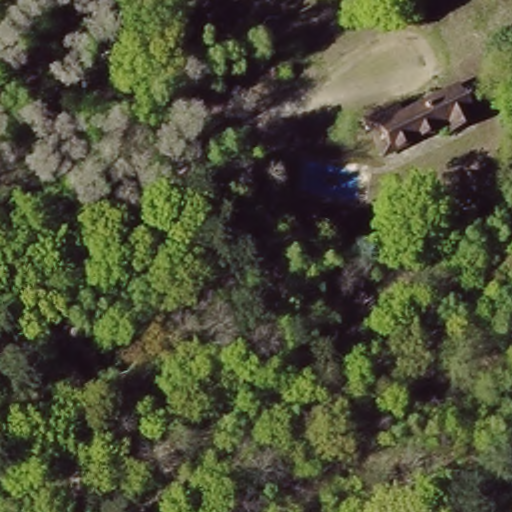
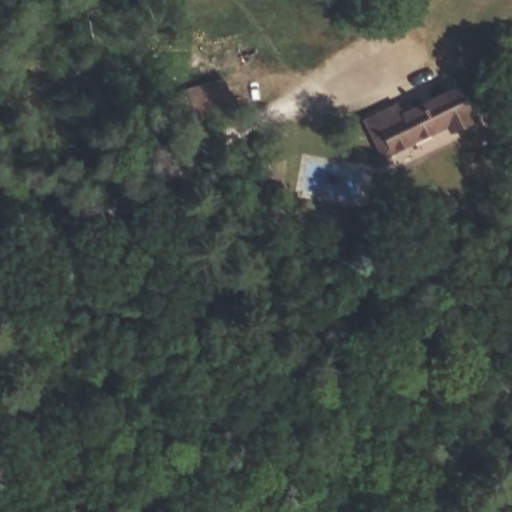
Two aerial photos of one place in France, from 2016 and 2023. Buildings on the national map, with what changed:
unchanged [(235,108),(190,119),(178,88),(226,76),(235,108)]
unchanged [(460,89),(488,132),(383,167),(362,127),(460,89)]

